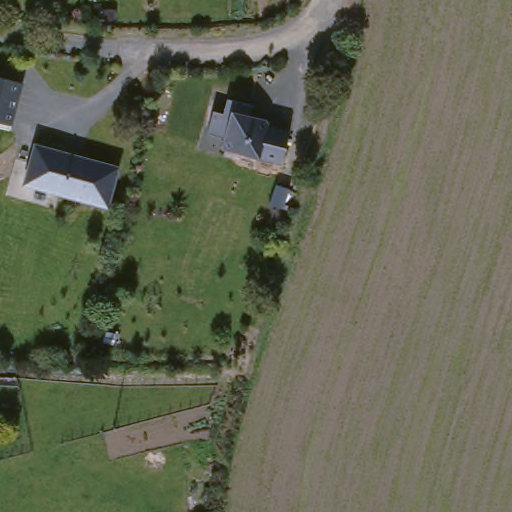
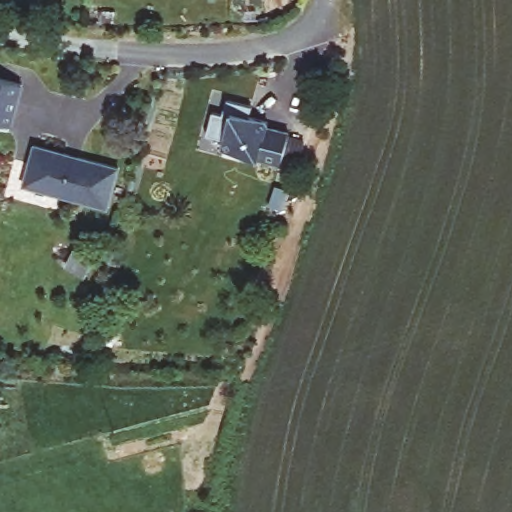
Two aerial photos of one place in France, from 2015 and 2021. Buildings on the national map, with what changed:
unchanged [(18,119),(0,114),(0,70),(27,78),(18,119)]
unchanged [(215,131),(221,109),(231,111),(236,97),(261,104),(259,115),(277,120),(276,125),(298,131),(289,162),(249,150),(231,145),(233,136),(215,131)]
unchanged [(124,163),(113,203),(29,181),(39,141),(124,163)]

